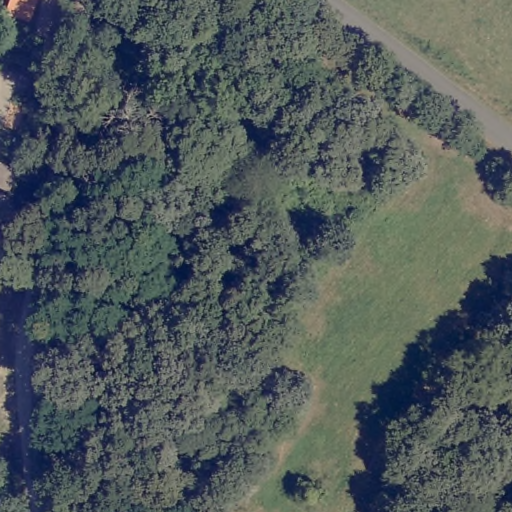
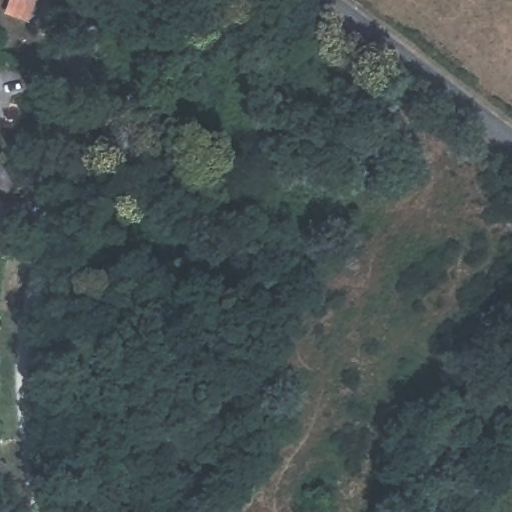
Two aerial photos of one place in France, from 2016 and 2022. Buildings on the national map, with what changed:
unchanged [(17,0),(43,0),(40,7),(17,0)]
unchanged [(3,188),(0,186),(0,162),(13,170),(19,172),(9,191),(3,188)]

